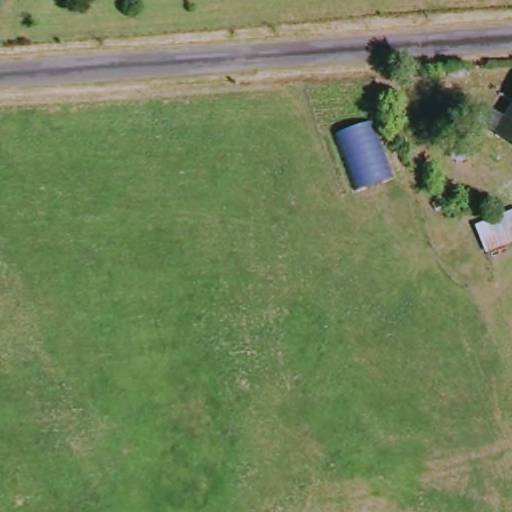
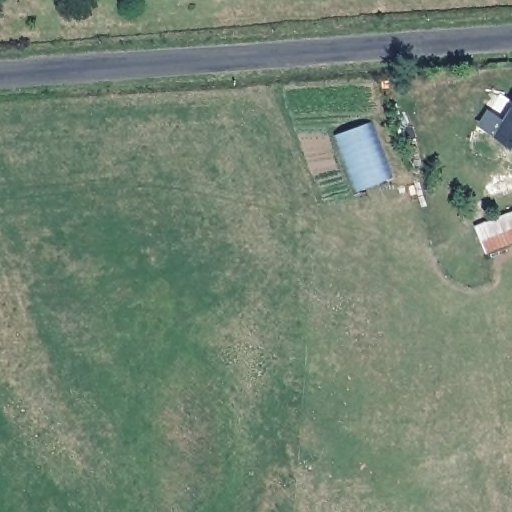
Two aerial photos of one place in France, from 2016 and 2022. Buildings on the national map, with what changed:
unchanged [(494,121),(512,131),(512,152),(484,135),(494,121)]
unchanged [(371,126),(393,180),(358,194),(339,139),(371,126)]
unchanged [(452,160),(452,126),(469,126),(466,161),(452,160)]
unchanged [(484,227),(512,215),(512,245),(495,252),(484,227)]

